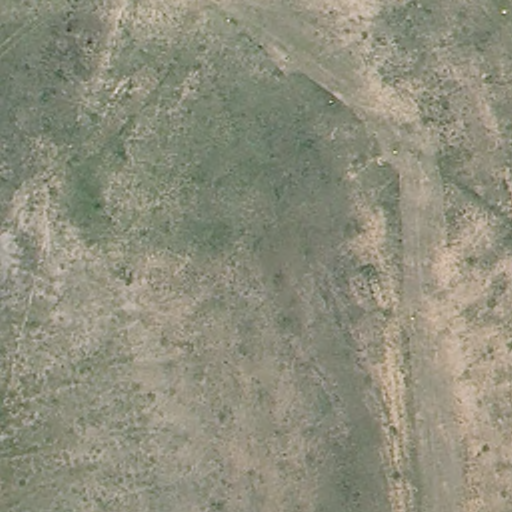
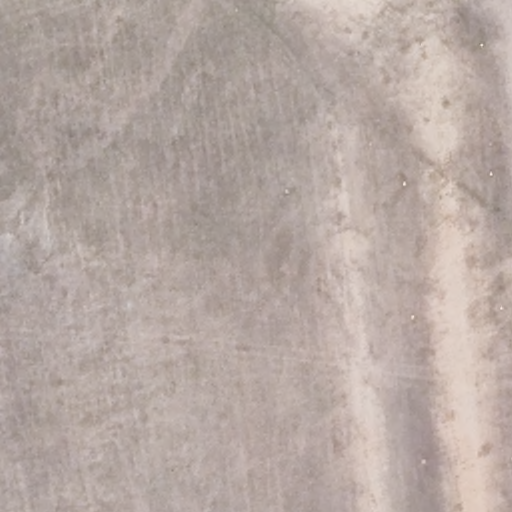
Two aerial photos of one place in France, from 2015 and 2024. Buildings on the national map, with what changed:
[]

